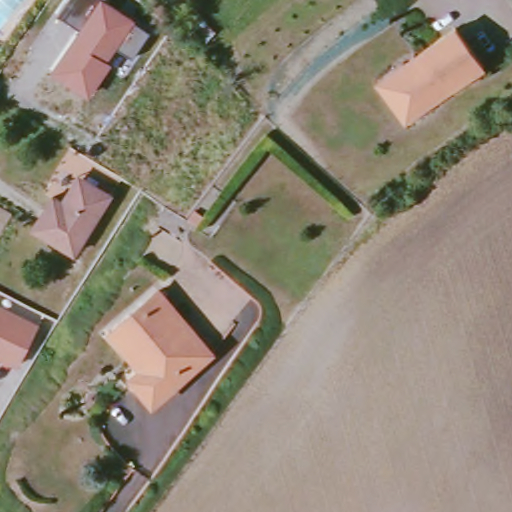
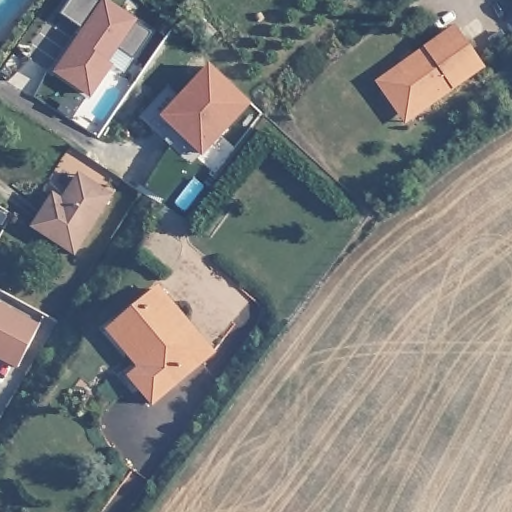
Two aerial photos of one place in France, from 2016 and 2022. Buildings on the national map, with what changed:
unchanged [(52,69),(80,26),(57,12),(66,0),(107,0),(134,19),(150,31),(132,55),(118,47),(108,60),(112,64),(89,97),(52,69)]
unchanged [(418,64),(420,69),(425,64),(422,60),(462,30),(491,70),(436,112),(430,105),(408,121),(390,99),(392,82),(418,64)]
new [(139,119),(170,87),(181,96),(210,65),(251,105),(203,157),(191,165),(139,119)]
unchanged [(76,255),(36,230),(57,196),(66,201),(83,175),(87,177),(114,195),(76,255)]
unchanged [(217,348),(208,356),(180,380),(153,403),(130,375),(141,365),(109,327),(112,325),(141,300),(161,282),(217,348)]
unchanged [(15,366),(0,359),(0,303),(36,322),(15,366)]

